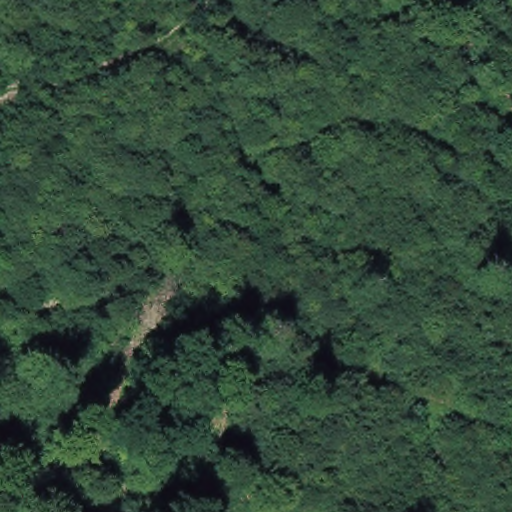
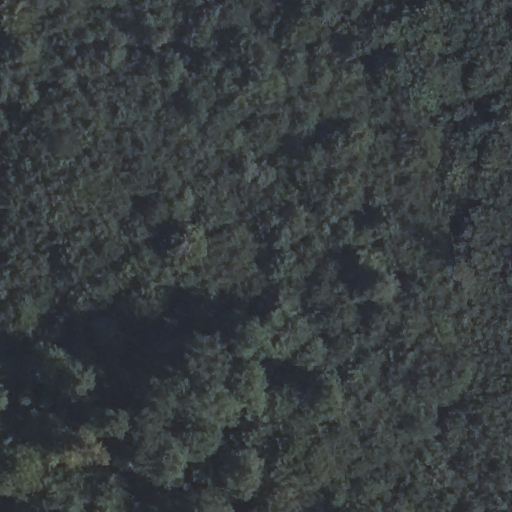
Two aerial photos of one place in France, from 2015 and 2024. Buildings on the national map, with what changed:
[]

